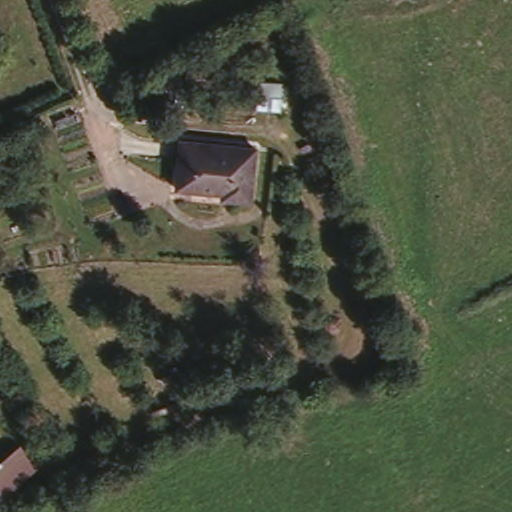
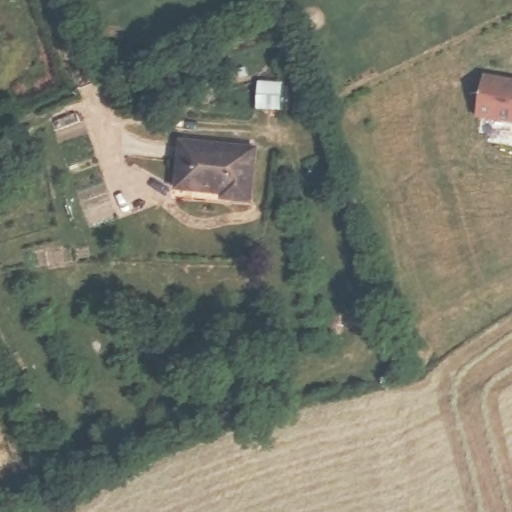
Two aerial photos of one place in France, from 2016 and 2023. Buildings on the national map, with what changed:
new [(483,74),(512,80),(512,121),(475,113),(483,74)]
unchanged [(287,84),(286,116),(257,113),(258,85),(287,84)]
unchanged [(258,153),(254,204),(231,202),(231,196),(176,190),(181,145),(258,153)]
demolished [(0,503),(0,416),(45,471),(0,503)]

